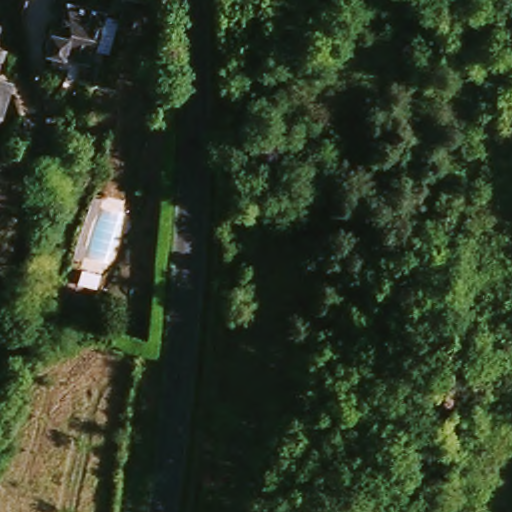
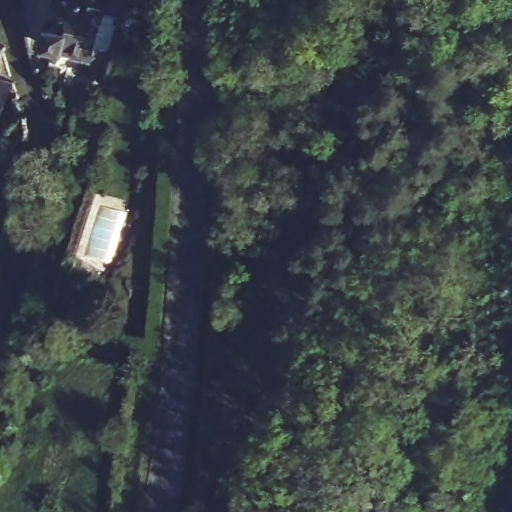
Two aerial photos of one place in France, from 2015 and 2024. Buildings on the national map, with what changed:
unchanged [(42,50),(43,43),(47,43),(61,9),(97,22),(80,71),(66,65),(62,64),(59,57),(42,50)]
unchanged [(7,56),(0,72),(0,35),(2,38),(7,56)]
unchanged [(0,126),(0,87),(14,93),(0,126)]

